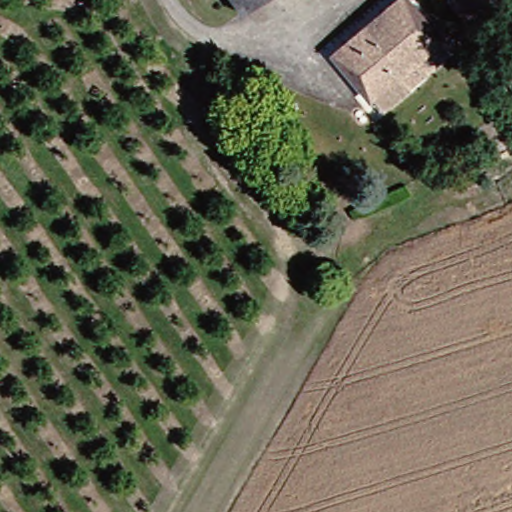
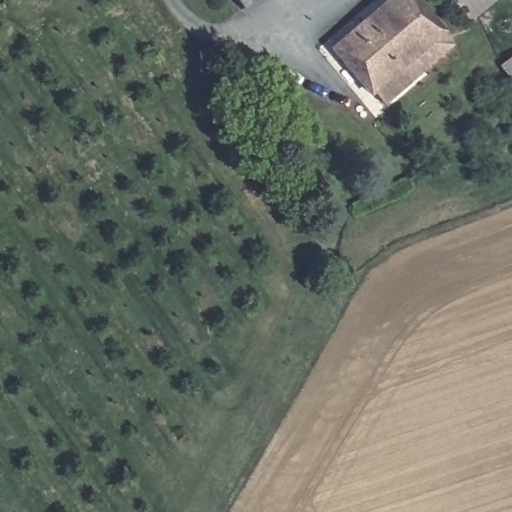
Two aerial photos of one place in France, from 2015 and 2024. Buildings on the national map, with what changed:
unchanged [(232,0),(245,0),(236,5),(232,0)]
unchanged [(396,0),(408,0),(439,28),(379,89),(338,54),(396,0)]
unchanged [(492,0),(484,9),(476,0),(492,0)]
unchanged [(439,28),(451,39),(390,99),(379,89),(439,28)]
unchanged [(502,74),(512,66),(512,88),(502,74)]

